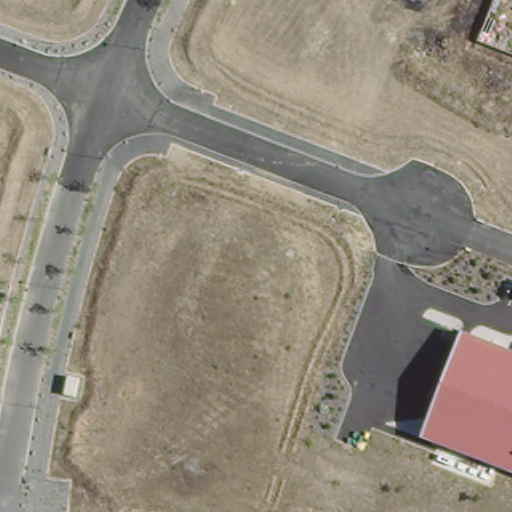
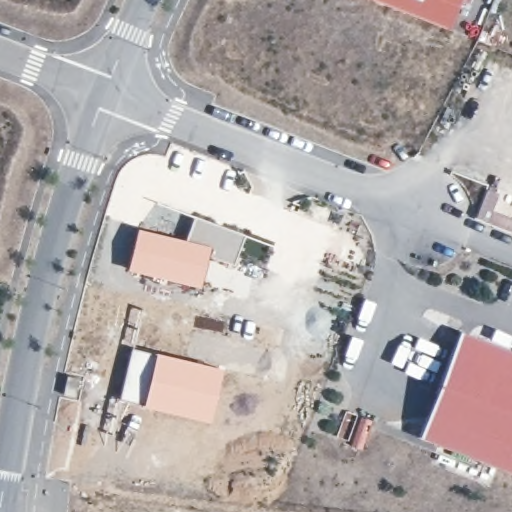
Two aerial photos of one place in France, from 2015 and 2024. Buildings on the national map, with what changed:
new [(450,30),(374,0),(462,0),(450,30)]
new [(138,233),(186,245),(193,219),(245,232),(237,262),(212,256),(202,290),(128,272),(138,233)]
unchanged [(512,351),(512,473),(420,439),(462,332),(512,351)]
new [(132,347),(155,352),(142,404),(120,398),(132,347)]
new [(155,352),(222,369),(210,422),(142,404),(155,352)]

